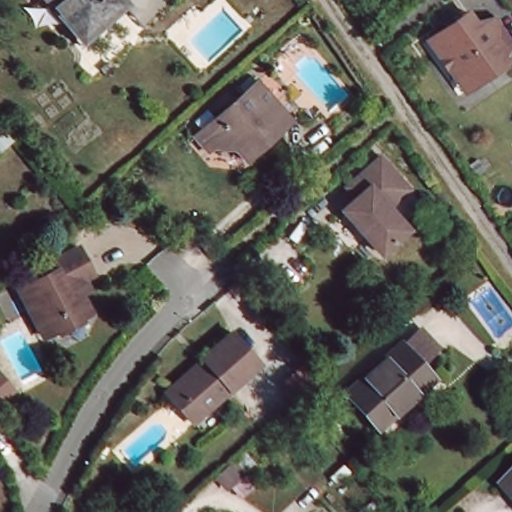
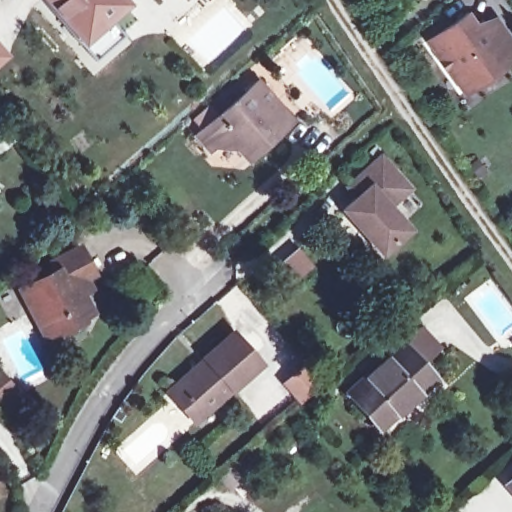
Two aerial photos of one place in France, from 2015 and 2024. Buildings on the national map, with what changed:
unchanged [(50,0),(121,0),(122,1),(83,37),(50,0)]
unchanged [(452,79),(424,40),(464,11),(475,28),(491,16),(512,46),(500,64),(473,83),(460,91),(452,79)]
new [(0,67),(0,42),(12,56),(0,67)]
unchanged [(107,73),(101,66),(107,61),(114,68),(107,73)]
unchanged [(192,140),(199,134),(257,85),(292,125),(291,126),(246,166),(236,153),(214,151),(207,157),(192,140)]
unchanged [(0,132),(4,129),(12,138),(0,149),(0,132)]
unchanged [(413,194),(393,211),(412,234),(386,257),(348,214),(360,204),(350,192),(359,184),(386,162),(413,194)]
unchanged [(44,335),(20,288),(56,270),(52,262),(80,247),(94,274),(89,276),(94,288),(95,289),(88,293),(82,295),(91,312),(44,335)]
unchanged [(347,396),(400,347),(402,349),(420,332),(437,352),(419,368),(432,383),(379,432),(347,396)]
unchanged [(187,413),(172,396),(201,370),(203,373),(211,366),(207,361),(237,335),(266,367),(236,393),(209,418),(199,427),(187,413)]
unchanged [(308,369),(325,388),(305,405),(289,386),(308,369)]
unchanged [(0,399),(0,374),(12,389),(0,399)]
unchanged [(507,484),(512,479),(512,490),(507,484)]

